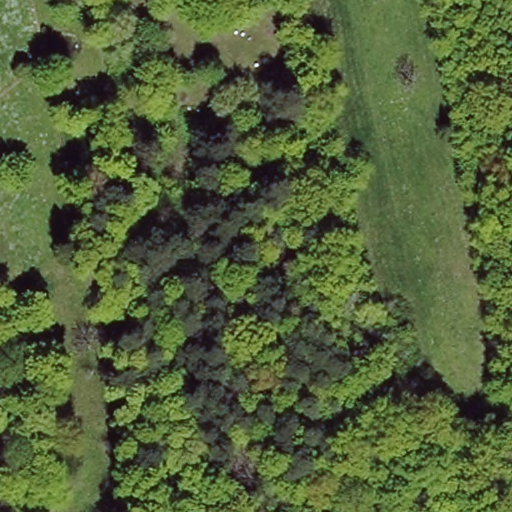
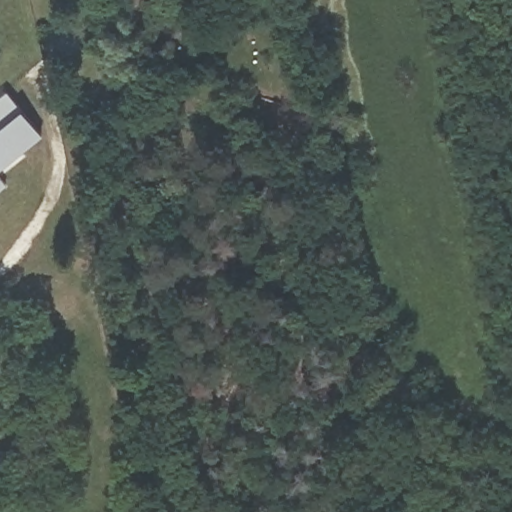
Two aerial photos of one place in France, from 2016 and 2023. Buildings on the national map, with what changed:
new [(0,96),(7,90),(23,108),(42,135),(0,169),(0,96)]
new [(0,191),(0,175),(8,184),(0,191)]

